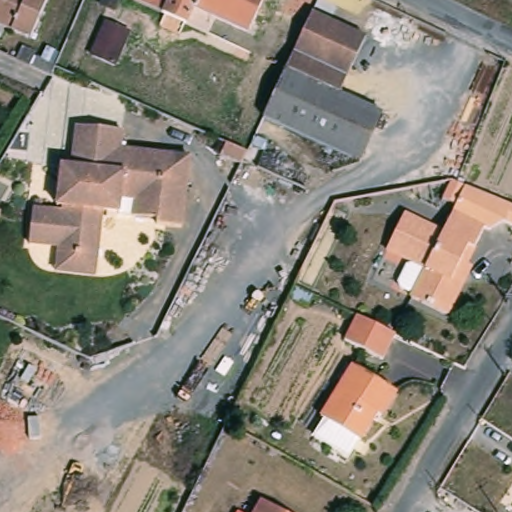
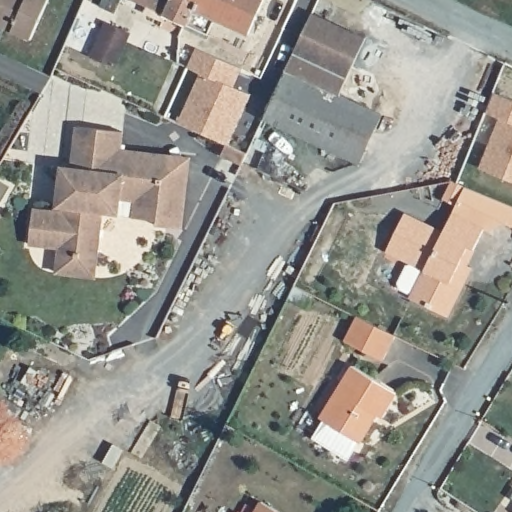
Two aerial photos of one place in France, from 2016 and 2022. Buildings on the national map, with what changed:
unchanged [(0,28),(0,0),(48,0),(33,34),(3,21),(0,28)]
unchanged [(113,2),(114,0),(131,0),(127,9),(113,2)]
unchanged [(266,0),(251,34),(217,18),(210,35),(165,14),(172,0),(266,0)]
unchanged [(315,13),(368,36),(342,94),(287,69),(315,13)]
unchanged [(24,41),(39,47),(32,61),(18,55),(24,41)]
new [(197,69),(206,50),(245,67),(252,70),(244,89),(261,96),(238,146),(189,124),(211,75),(197,69)]
unchanged [(39,52),(57,60),(53,71),(35,63),(39,52)]
unchanged [(385,114),(362,163),(265,118),(287,69),(342,94),(385,114)]
new [(499,116),(487,111),(494,91),(512,99),(512,180),(480,166),(499,116)]
unchanged [(62,248),(32,244),(37,206),(55,208),(61,160),(73,161),(79,123),(129,128),(127,148),(196,155),(187,227),(159,224),(159,217),(135,214),(136,199),(127,197),(125,211),(109,209),(102,276),(60,270),(62,248)]
unchanged [(446,199),(455,177),(512,202),(512,225),(487,226),(455,212),(457,204),(446,199)]
unchanged [(411,299),(424,272),(386,254),(405,212),(446,233),(455,212),(487,226),(452,317),(411,299)]
unchanged [(387,325),(407,334),(395,359),(357,340),(369,316),(387,325)]
unchanged [(397,393),(382,417),(378,414),(360,443),(322,418),(354,366),(397,393)]
unchanged [(272,507),(282,512),(269,512),(272,507)]

